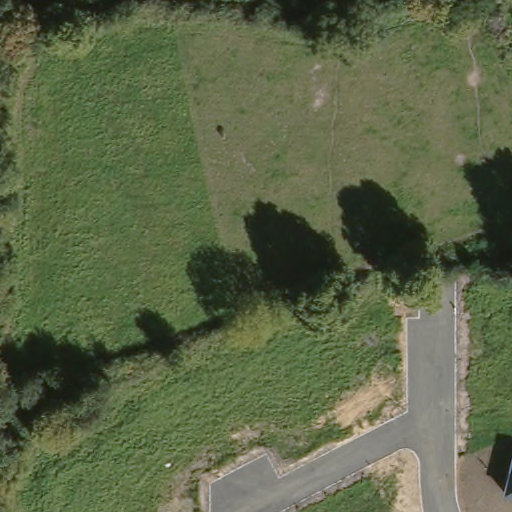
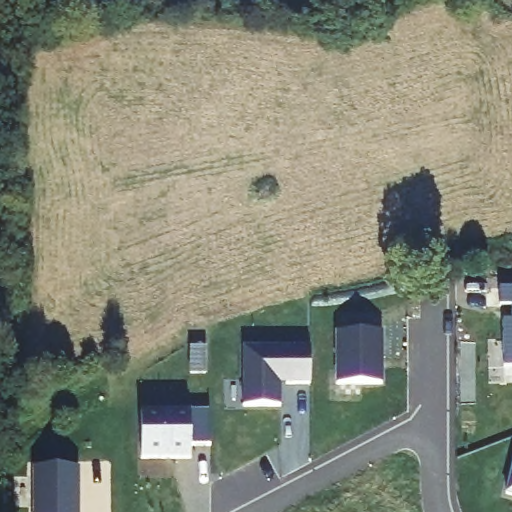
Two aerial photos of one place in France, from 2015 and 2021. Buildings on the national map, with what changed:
new [(499,306),(499,288),(512,288),(512,306),(499,306)]
new [(503,369),(501,320),(512,320),(512,369),(503,369)]
new [(336,325),(380,326),(379,378),(334,377),(336,325)]
new [(241,347),(308,349),(308,385),(284,385),(284,380),(278,380),(277,407),(240,406),(241,347)]
new [(210,445),(191,445),(191,460),(141,460),(141,408),(191,408),(190,410),(210,410),(210,445)]
unchanged [(512,462),(512,496),(503,494),(512,462)]
new [(33,512),(33,467),(79,467),(79,512),(33,512)]

